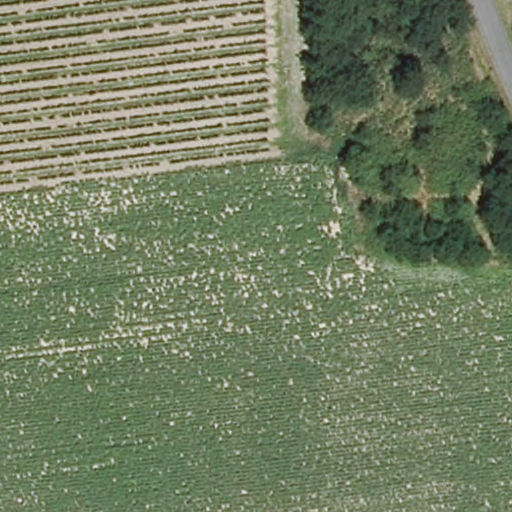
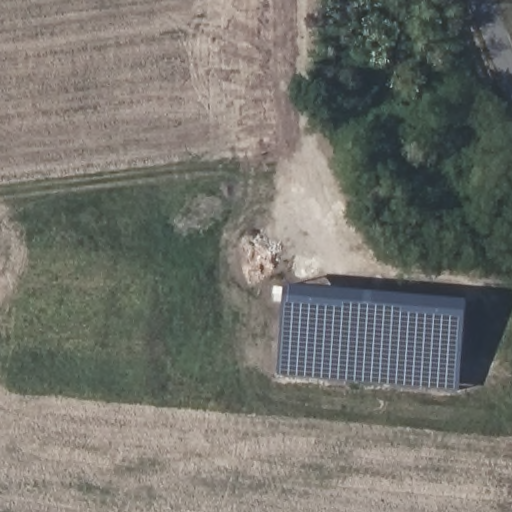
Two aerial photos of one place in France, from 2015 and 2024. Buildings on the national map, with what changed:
new [(460,301),(453,390),(273,375),(281,286),(460,301)]

